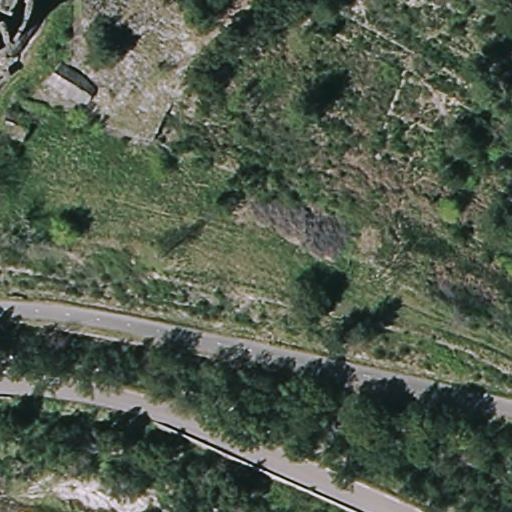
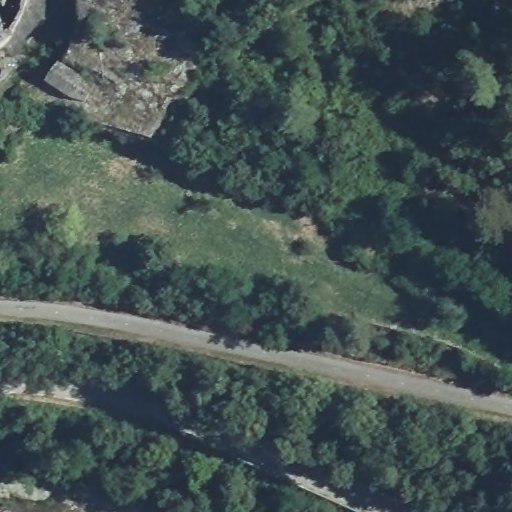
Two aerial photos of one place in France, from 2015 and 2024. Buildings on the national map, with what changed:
unchanged [(84,97),(58,85),(63,70),(91,82),(84,97)]
unchanged [(0,119),(1,116),(18,125),(9,144),(0,139),(0,119)]

